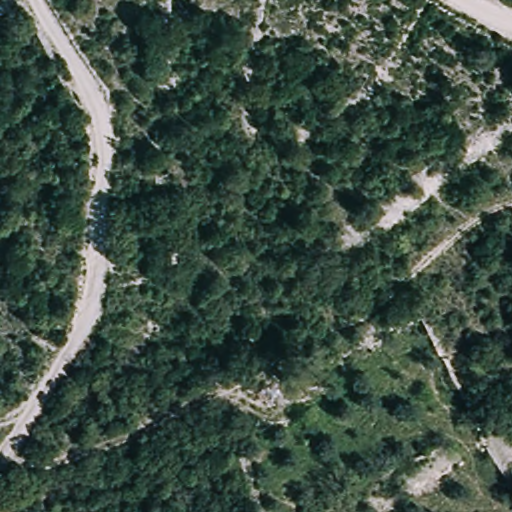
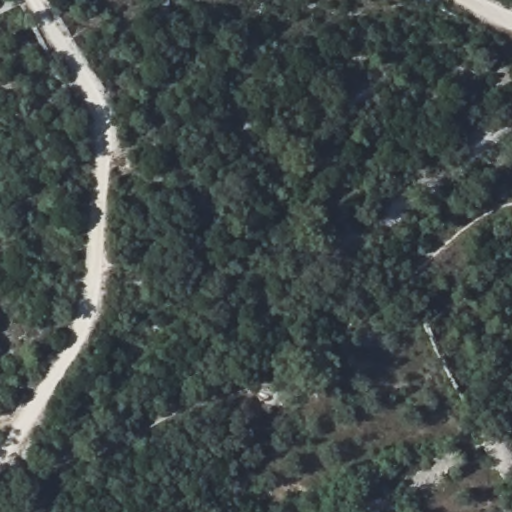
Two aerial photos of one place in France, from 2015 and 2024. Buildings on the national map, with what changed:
unchanged [(293,374),(301,395),(268,409),(258,388),(293,374)]

